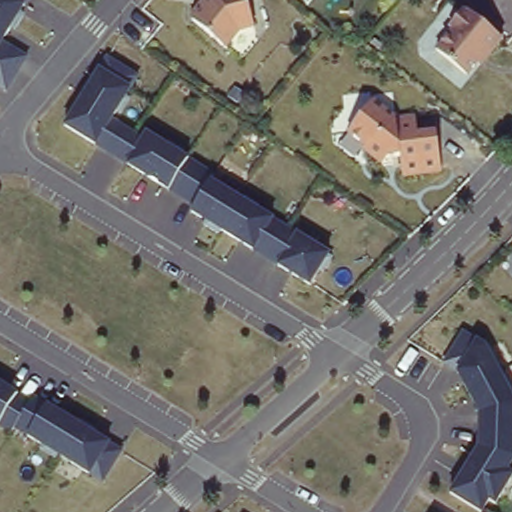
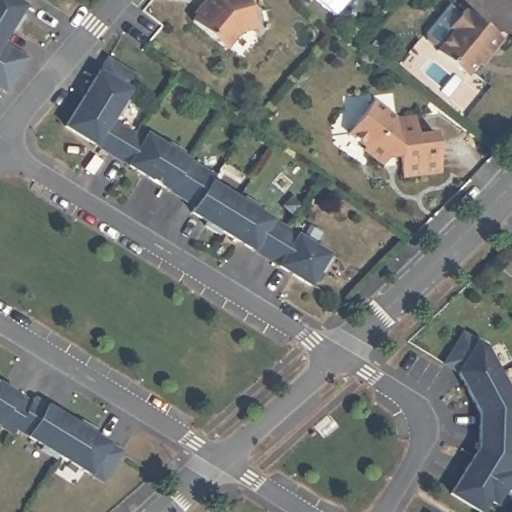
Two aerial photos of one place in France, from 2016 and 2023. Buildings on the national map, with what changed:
unchanged [(7,34),(32,54),(9,90),(0,84),(0,0),(26,0),(7,34)]
unchanged [(206,0),(249,0),(255,24),(234,36),(229,48),(193,16),(206,0)]
unchanged [(452,34),(448,28),(465,9),(470,12),(474,10),(507,37),(493,55),(490,53),(470,74),(440,51),(452,34)]
unchanged [(101,68),(110,55),(139,72),(131,83),(116,119),(145,137),(150,133),(331,246),(313,283),(190,210),(196,201),(70,122),(101,68)]
unchanged [(377,100),(398,115),(416,114),(420,131),(436,129),(442,166),(405,172),(350,134),(377,100)]
unchanged [(483,414),(458,366),(477,338),(512,394),(512,473),(491,507),(455,486),(479,443),(483,414)]
unchanged [(122,449),(106,482),(0,421),(0,378),(122,449)]

